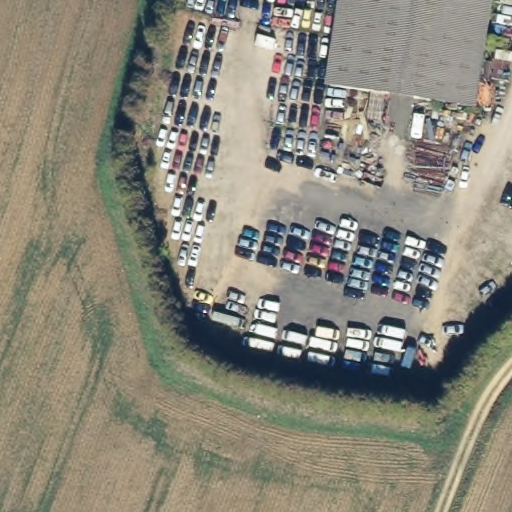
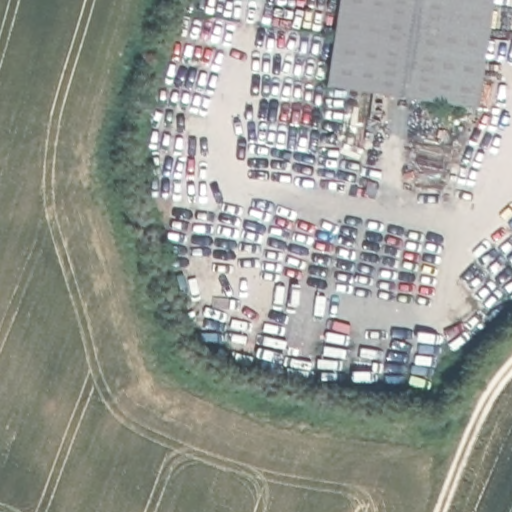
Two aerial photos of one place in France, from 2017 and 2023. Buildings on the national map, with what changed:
unchanged [(345,0),(494,0),(477,110),(332,85),(345,0)]

